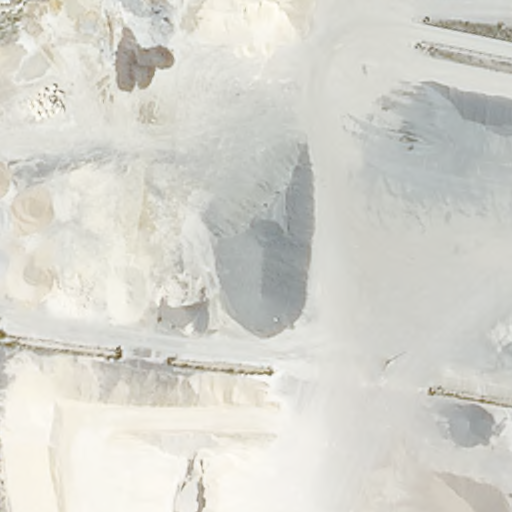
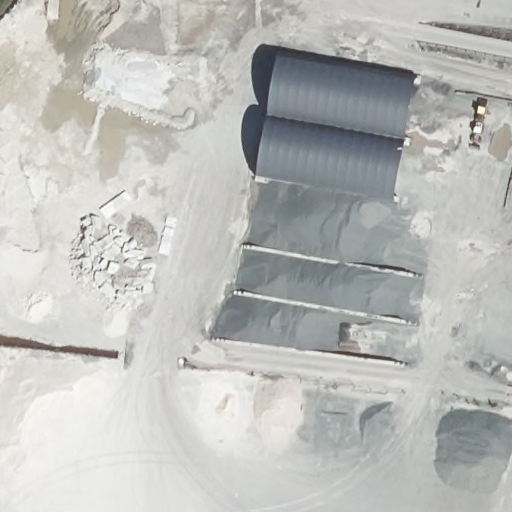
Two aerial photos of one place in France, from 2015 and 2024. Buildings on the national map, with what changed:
new [(279,57),(417,78),(406,142),(268,118),(279,57)]
new [(258,176),(268,118),(406,142),(393,199),(258,176)]

